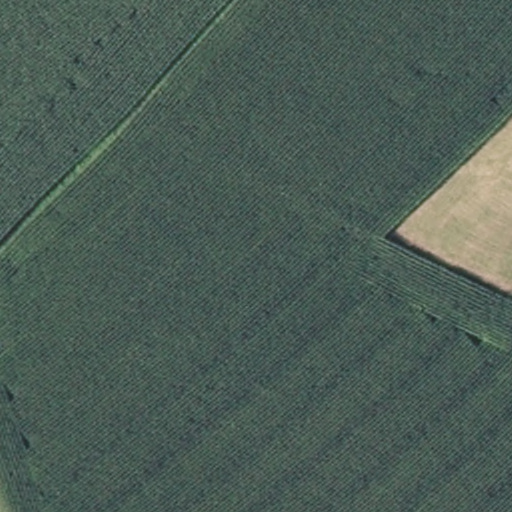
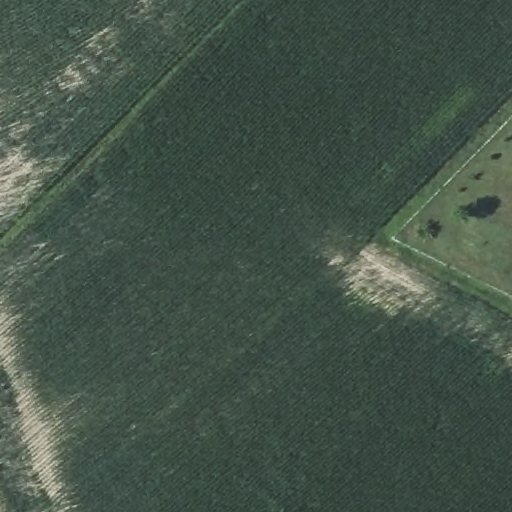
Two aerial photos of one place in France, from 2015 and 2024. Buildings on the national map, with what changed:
[]

